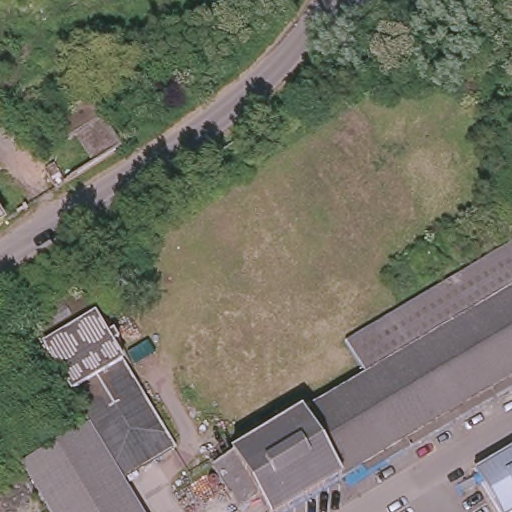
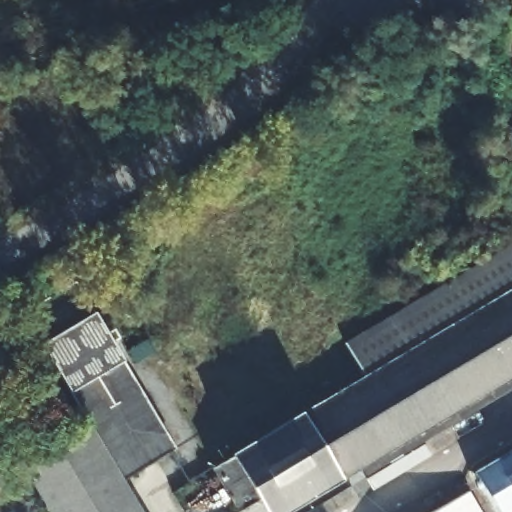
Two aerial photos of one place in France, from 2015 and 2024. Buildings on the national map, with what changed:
unchanged [(230,456),(365,374),(347,342),(512,246),(512,372),(396,442),(403,454),(387,463),(362,477),(355,466),(280,512),(263,512),(255,501),(240,509),(214,465),(230,456)]
unchanged [(17,309),(69,280),(165,446),(115,476),(85,424),(17,309)]
unchanged [(137,512),(52,512),(21,461),(85,424),(115,476),(137,512)]
unchanged [(509,512),(496,512),(472,470),(512,446),(512,510),(509,512)]
new [(481,512),(430,512),(469,490),(481,512)]

